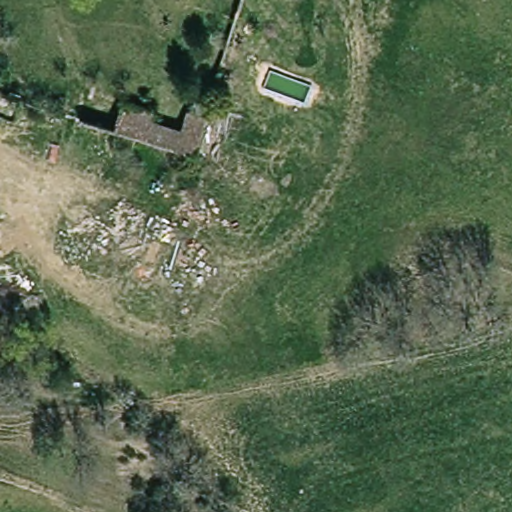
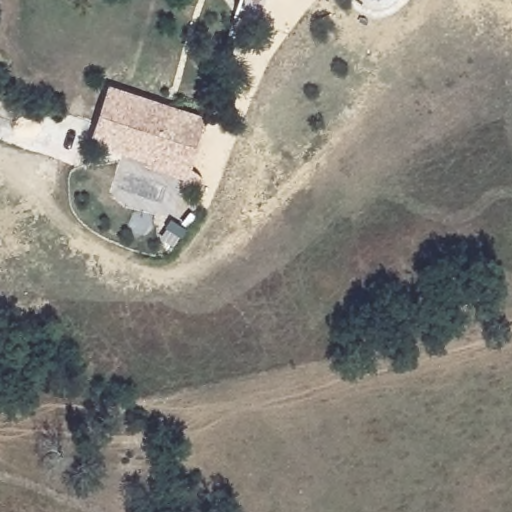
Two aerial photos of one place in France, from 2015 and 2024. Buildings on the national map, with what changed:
new [(109,85),(208,118),(191,170),(200,175),(203,181),(204,190),(203,195),(183,186),(184,181),(89,144),(109,85)]
demolished [(175,125),(186,111),(202,115),(191,152),(144,136),(150,116),(175,125)]

